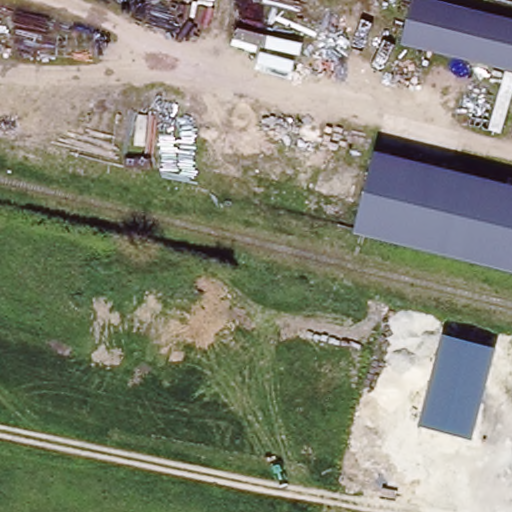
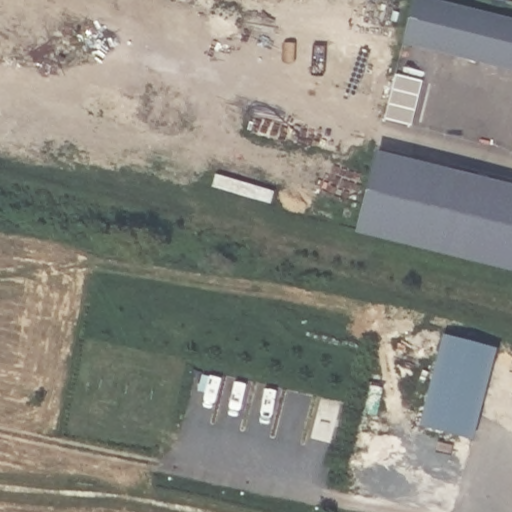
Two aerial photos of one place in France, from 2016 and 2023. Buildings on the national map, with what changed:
unchanged [(411,0),(440,0),(512,20),(512,70),(400,40),(411,0)]
unchanged [(373,161),(512,196),(512,259),(359,220),(373,161)]
unchanged [(423,426),(445,336),(497,349),(474,441),(423,426)]

